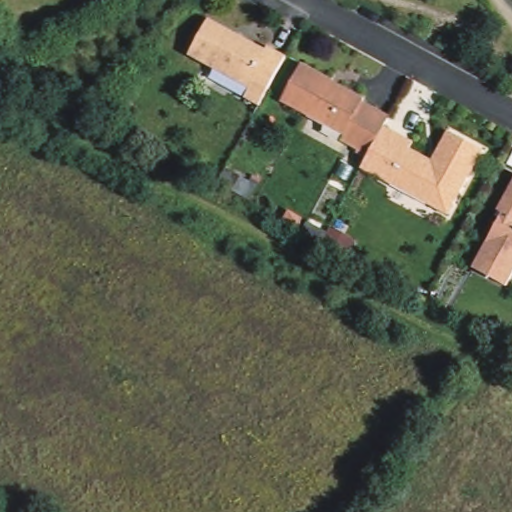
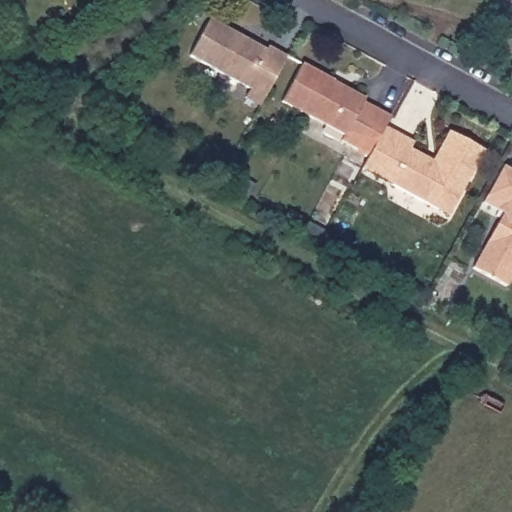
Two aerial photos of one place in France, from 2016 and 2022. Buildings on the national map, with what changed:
unchanged [(208,22),(264,55),(267,51),(286,62),(259,110),(244,100),(250,89),(190,54),(208,22)]
unchanged [(359,101),(356,107),(386,124),(380,134),(365,160),(336,142),(339,137),(281,103),(301,67),(359,101)]
unchanged [(365,160),(380,134),(430,161),(445,133),(482,154),(445,219),(359,170),(365,160)]
unchanged [(512,266),(499,288),(466,270),(494,215),(490,211),(509,176),(512,178),(512,266)]

